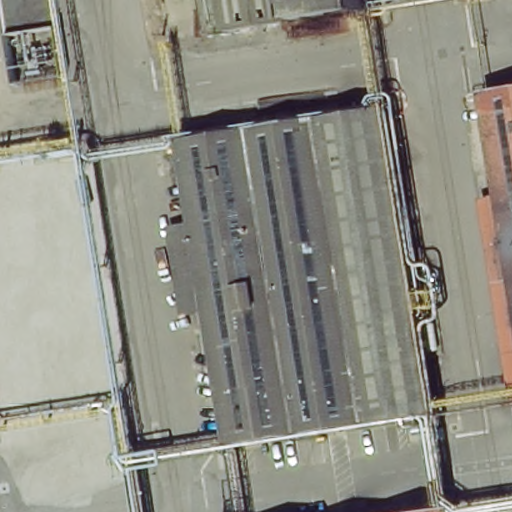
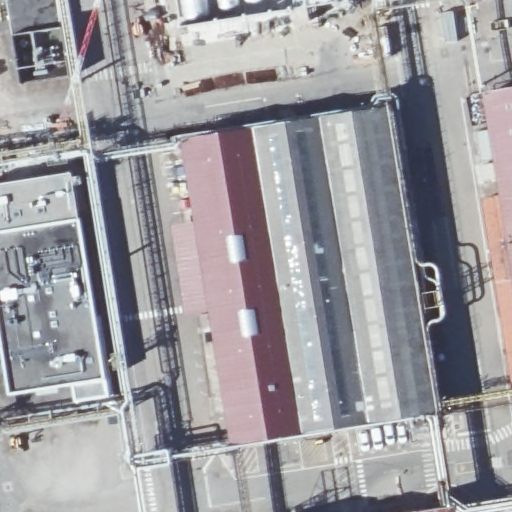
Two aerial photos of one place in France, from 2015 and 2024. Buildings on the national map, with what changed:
unchanged [(7,35),(3,0),(54,0),(60,30),(7,35)]
demolished [(221,37),(215,0),(300,0),(304,24),(221,37)]
demolished [(304,24),(300,0),(370,0),(372,12),(304,24)]
new [(303,7),(303,0),(339,0),(339,1),(303,7)]
unchanged [(487,93),(512,89),(512,254),(502,192),(487,93)]
unchanged [(198,219),(185,137),(383,107),(433,411),(234,442),(212,307),(198,219)]
demolished [(89,159),(129,400),(5,420),(0,391),(0,172),(89,159)]
unchanged [(512,388),(480,196),(502,192),(512,254),(512,388)]
unchanged [(212,307),(186,311),(170,222),(198,219),(212,307)]
new [(75,392),(75,385),(11,395),(0,323),(0,233),(80,220),(97,316),(104,316),(113,386),(75,392)]
unchanged [(338,504),(356,501),(358,512),(340,512),(338,504)]

